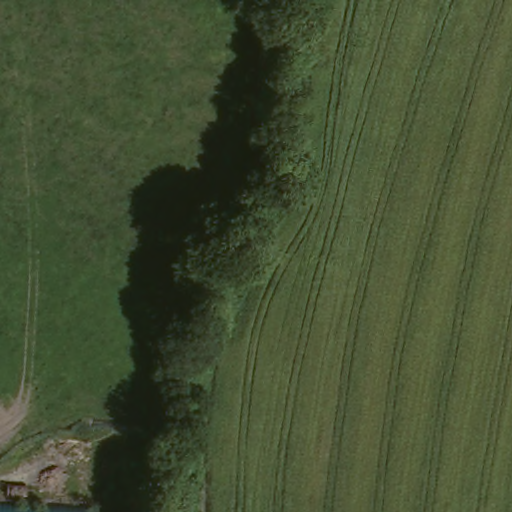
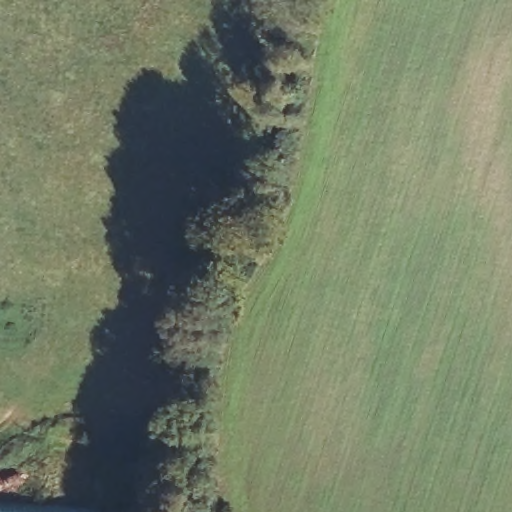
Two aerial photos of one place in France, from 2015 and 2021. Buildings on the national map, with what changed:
unchanged [(101,512),(0,512),(0,505),(101,511),(101,512)]

